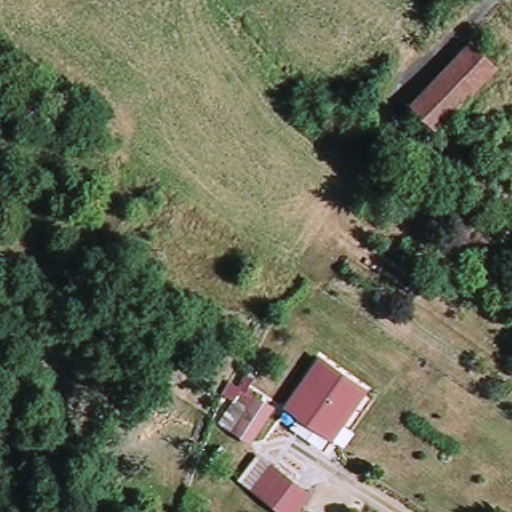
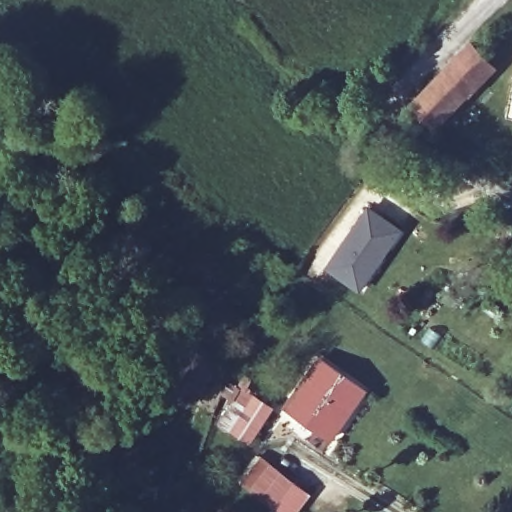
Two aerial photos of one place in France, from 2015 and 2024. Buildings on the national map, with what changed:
unchanged [(470,39),(499,65),(439,129),(411,102),(470,39)]
new [(512,95),(512,117),(507,116),(512,95)]
new [(327,269),(368,208),(403,231),(359,290),(327,269)]
unchanged [(292,410),(325,363),(340,374),(308,420),(292,410)]
unchanged [(320,430),(308,420),(340,374),(368,394),(344,429),(336,440),(320,430)]
unchanged [(265,407),(244,436),(229,425),(251,396),(265,407)]
unchanged [(258,494),(250,487),(268,461),(277,467),(304,485),(285,512),(258,494)]

